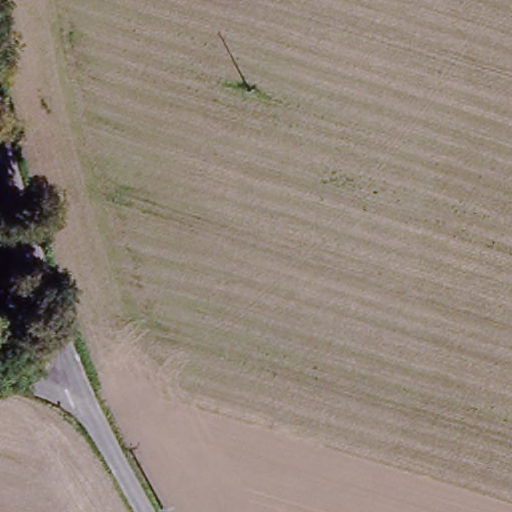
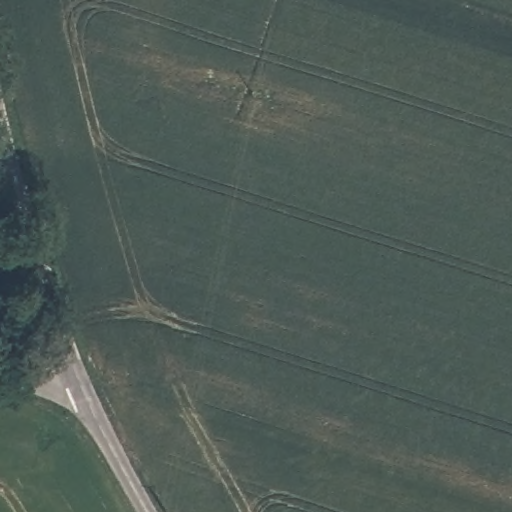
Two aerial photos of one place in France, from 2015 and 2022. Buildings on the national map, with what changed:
[]

